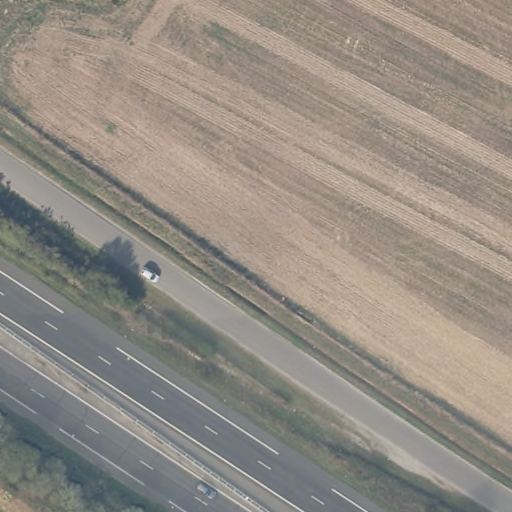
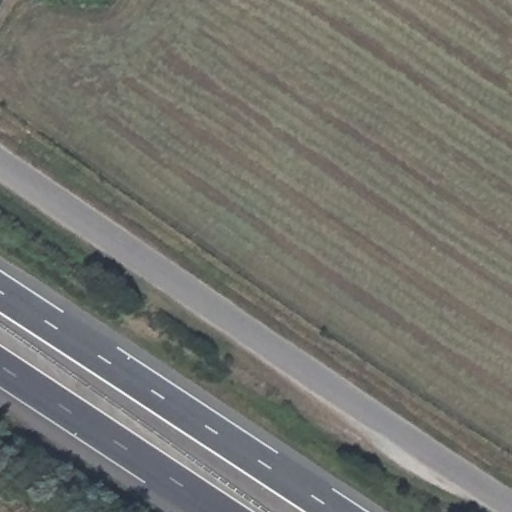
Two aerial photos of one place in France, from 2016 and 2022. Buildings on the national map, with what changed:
[]

